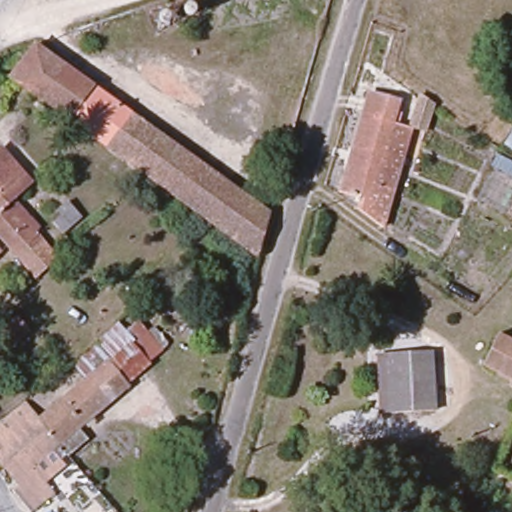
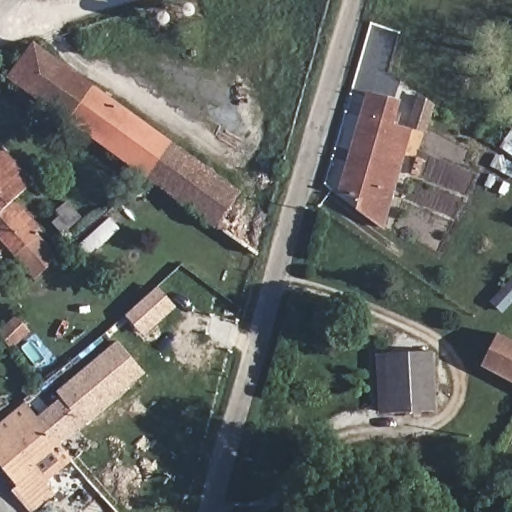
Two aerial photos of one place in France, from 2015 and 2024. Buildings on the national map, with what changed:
unchanged [(30,47),(85,88),(62,124),(27,98),(4,80),(30,47)]
unchanged [(85,88),(119,112),(95,148),(62,124),(85,88)]
unchanged [(356,218),(359,205),(340,199),(370,99),(398,107),(393,127),(410,133),(380,234),(356,218)]
unchanged [(137,177),(97,149),(95,148),(119,112),(165,145),(142,181),(137,177)]
unchanged [(503,150),(512,134),(512,156),(503,150)]
unchanged [(142,181),(165,145),(223,187),(197,222),(142,181)]
unchanged [(0,158),(24,185),(5,204),(35,236),(9,259),(0,250),(0,158)]
unchanged [(197,222),(223,187),(267,219),(255,262),(197,222)]
unchanged [(52,220),(61,212),(56,207),(65,198),(82,217),(65,233),(52,220)]
unchanged [(35,236),(44,249),(50,256),(55,261),(30,282),(9,259),(35,236)]
new [(145,337),(125,316),(159,286),(177,307),(145,337)]
unchanged [(0,332),(17,317),(30,332),(11,347),(0,334),(0,332)]
unchanged [(158,361),(119,394),(88,355),(125,322),(158,361)]
unchanged [(480,373),(496,339),(512,347),(512,390),(480,373)]
unchanged [(66,461),(39,431),(74,397),(60,380),(76,364),(88,355),(119,394),(123,400),(75,440),(84,452),(70,465),(66,461)]
unchanged [(373,357),(383,357),(400,357),(428,355),(430,415),(385,417),(375,417),(373,357)]
unchanged [(39,431),(66,461),(60,467),(51,460),(15,490),(0,470),(0,433),(22,413),(39,431)]
new [(116,512),(114,512),(115,511),(116,512)]

